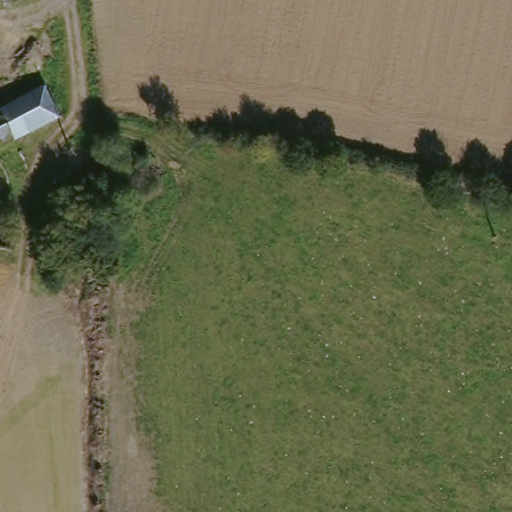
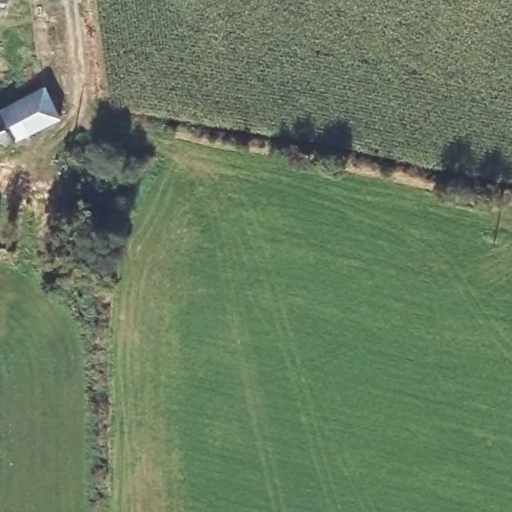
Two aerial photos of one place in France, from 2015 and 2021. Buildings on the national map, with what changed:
unchanged [(0,0),(4,0),(2,8),(0,8),(0,0)]
unchanged [(0,128),(0,113),(40,93),(56,122),(9,145),(0,150),(0,128)]

